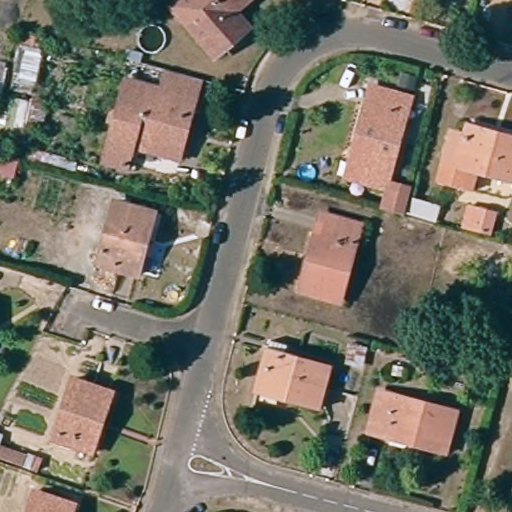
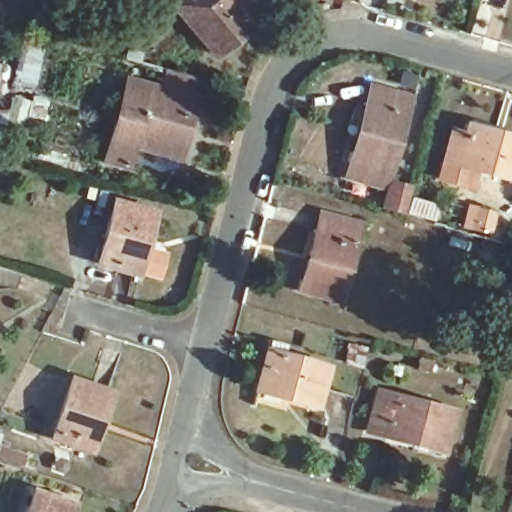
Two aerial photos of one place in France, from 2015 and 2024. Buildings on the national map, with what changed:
unchanged [(212,45),(174,0),(234,0),(231,2),(245,18),(212,45)]
unchanged [(34,83),(21,80),(16,79),(25,41),(26,41),(42,45),(34,83)]
unchanged [(106,158),(107,153),(116,120),(109,119),(113,105),(120,106),(129,75),(164,85),(169,66),(203,76),(198,94),(184,146),(182,156),(173,154),(136,143),(131,160),(130,165),(106,158)]
unchanged [(411,90),(396,86),(399,75),(414,79),(411,90)]
unchanged [(384,190),(340,178),(344,164),(346,165),(368,87),(409,98),(384,190)]
unchanged [(21,141),(22,139),(9,135),(4,134),(6,124),(14,94),(19,95),(34,97),(35,94),(49,96),(45,123),(30,121),(27,142),(21,141)]
unchanged [(441,180),(449,152),(454,132),(467,136),(469,126),(512,138),(512,181),(478,171),(473,189),(441,180)]
unchanged [(0,168),(0,153),(1,150),(21,155),(15,172),(0,168)]
unchanged [(432,221),(403,214),(402,216),(379,210),(385,190),(386,185),(409,190),(407,196),(406,200),(436,208),(432,221)]
unchanged [(135,277),(94,266),(112,202),(155,214),(151,229),(148,227),(135,277)]
unchanged [(491,231),(464,224),(467,211),(477,215),(480,205),(496,210),(491,231)]
unchanged [(342,298),(298,286),(302,271),(305,272),(322,210),(364,221),(342,298)]
unchanged [(301,407),(302,405),(252,391),(264,351),(267,342),(283,347),(281,356),(326,369),(315,411),(301,407)]
unchanged [(88,454),(49,440),(69,380),(112,394),(107,408),(104,407),(88,454)]
unchanged [(447,452),(433,448),(433,445),(368,427),(380,387),(458,409),(447,452)]
unchanged [(25,462),(0,454),(0,441),(2,441),(29,450),(44,455),(39,467),(25,462)]
unchanged [(75,512),(25,512),(31,492),(77,507),(75,512)]

